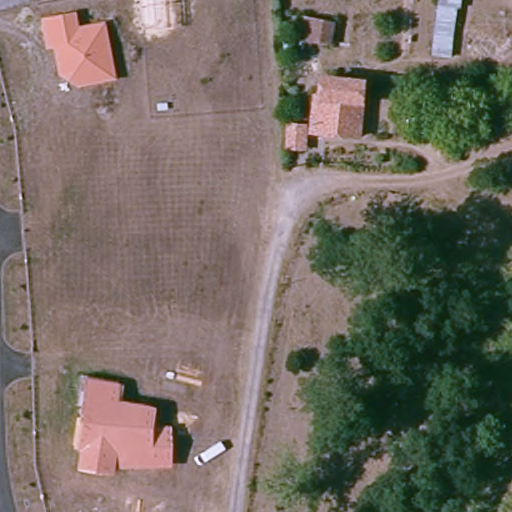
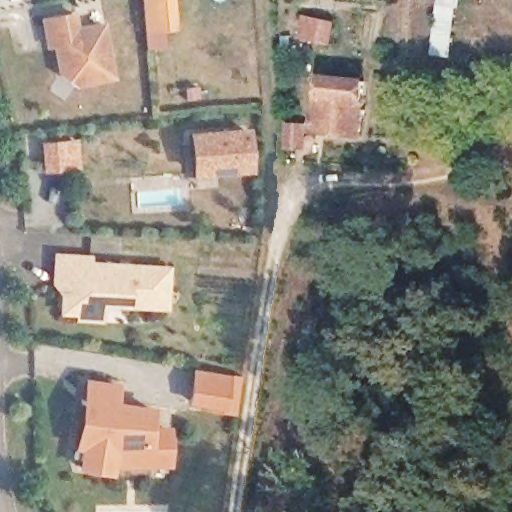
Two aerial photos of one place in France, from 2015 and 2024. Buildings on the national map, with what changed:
new [(142,0),(174,0),(176,28),(146,32),(142,0)]
unchanged [(433,0),(460,0),(457,12),(431,10),(433,0)]
unchanged [(457,12),(452,61),(427,56),(431,10),(457,12)]
unchanged [(78,27),(105,23),(116,82),(75,89),(57,77),(52,50),(45,52),(39,20),(75,11),(78,27)]
unchanged [(329,39),(299,35),(300,15),(330,19),(329,39)]
unchanged [(313,119),(315,100),(322,101),(323,81),(363,87),(361,107),(357,141),(350,140),(328,137),(312,135),(313,119)]
new [(196,184),(195,171),(194,171),(190,134),(245,129),(249,167),(213,170),(214,182),(196,184)]
new [(64,141),(66,166),(46,168),(44,143),(64,141)]
new [(63,310),(65,292),(56,281),(57,254),(90,255),(90,262),(170,266),(167,306),(127,304),(127,312),(101,311),(101,319),(80,317),(80,311),(63,310)]
new [(192,367),(243,376),(236,416),(187,406),(192,367)]
unchanged [(120,400),(155,408),(152,423),(170,423),(171,469),(114,468),(112,478),(75,471),(79,451),(72,449),(85,376),(120,384),(120,400)]

